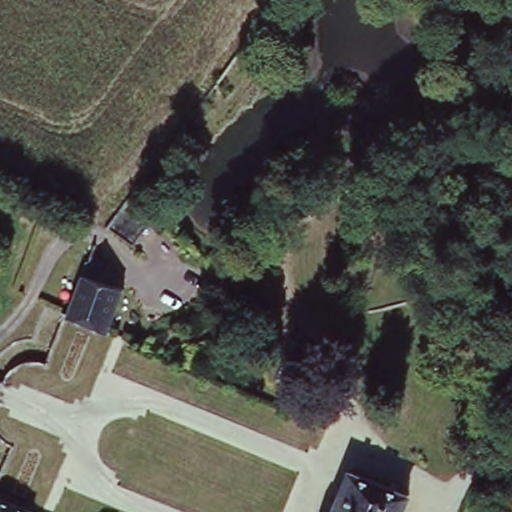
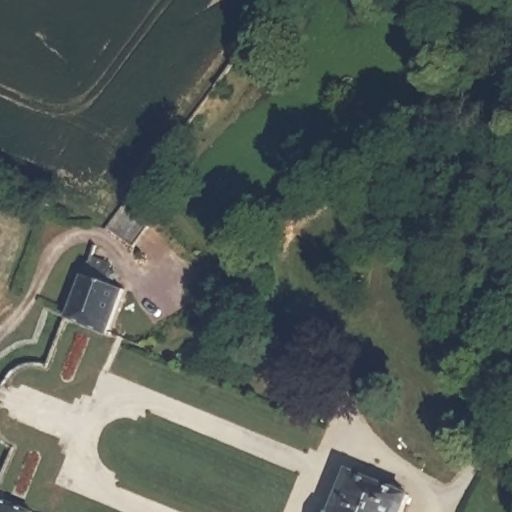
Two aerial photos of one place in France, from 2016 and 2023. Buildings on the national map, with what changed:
unchanged [(109,225),(124,204),(149,223),(135,243),(109,225)]
unchanged [(87,275),(125,294),(110,328),(71,308),(87,275)]
unchanged [(406,497),(400,512),(334,512),(348,476),(406,497)]
unchanged [(17,512),(0,512),(0,505),(17,512)]

